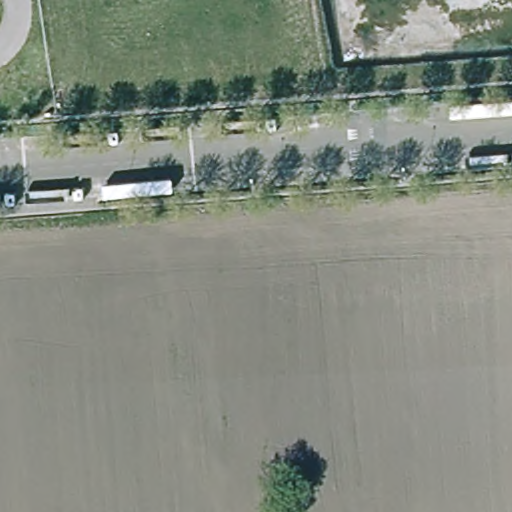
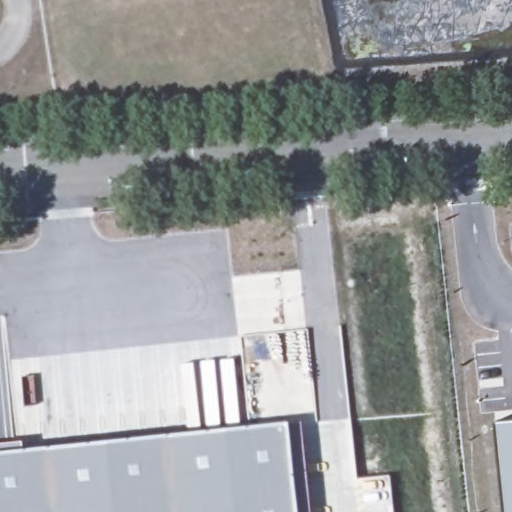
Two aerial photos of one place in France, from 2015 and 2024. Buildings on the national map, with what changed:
new [(512,421),(512,512),(508,512),(499,423),(512,421)]
new [(0,512),(0,456),(286,425),(295,512),(0,512)]

